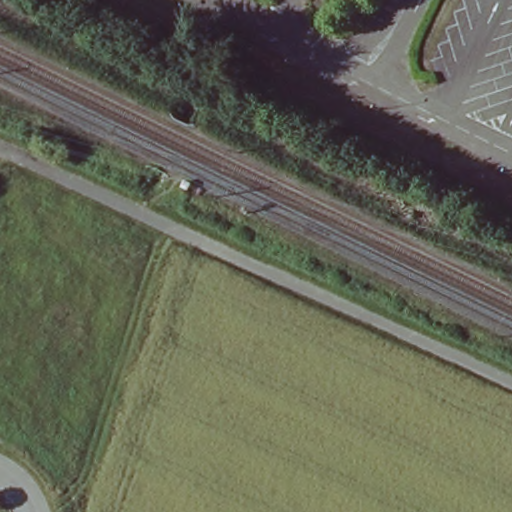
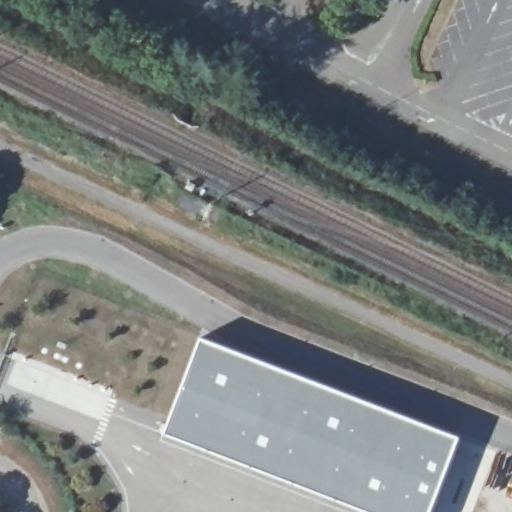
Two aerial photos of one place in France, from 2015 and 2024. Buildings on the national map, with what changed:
new [(432,512),(371,512),(164,433),(201,337),(460,437),(432,512)]

